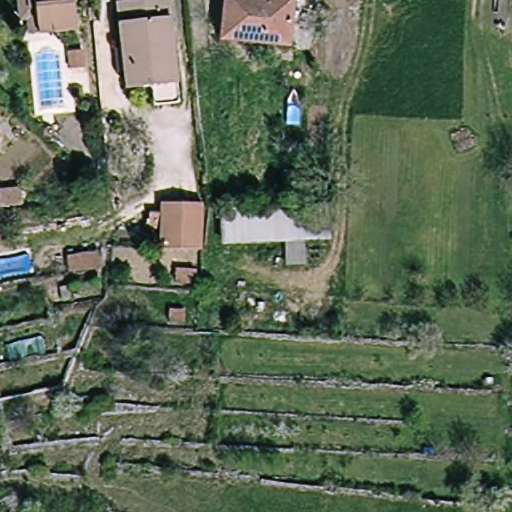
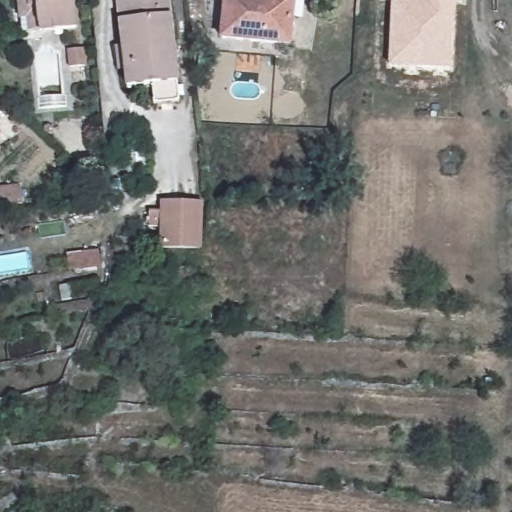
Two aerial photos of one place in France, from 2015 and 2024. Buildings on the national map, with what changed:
unchanged [(24,6),(17,7),(16,0),(74,0),(77,29),(65,30),(40,32),(27,34),(24,6)]
unchanged [(162,96),(161,81),(130,84),(129,67),(117,69),(113,41),(125,40),(121,0),(172,0),(180,79),(182,94),(162,96)]
unchanged [(226,0),(303,0),(301,27),(293,26),(291,49),(222,42),(226,0)]
new [(388,67),(391,0),(455,0),(452,70),(388,67)]
unchanged [(82,67),(68,69),(66,51),(80,49),(82,67)]
unchanged [(0,128),(0,125),(2,126),(0,128)]
unchanged [(291,200),(292,187),(310,188),(310,200),(291,200)]
unchanged [(207,245),(167,243),(168,203),(208,205),(207,245)]
unchanged [(327,206),(327,241),(227,240),(227,205),(327,206)]
unchanged [(101,267),(70,272),(67,254),(99,249),(101,267)]

